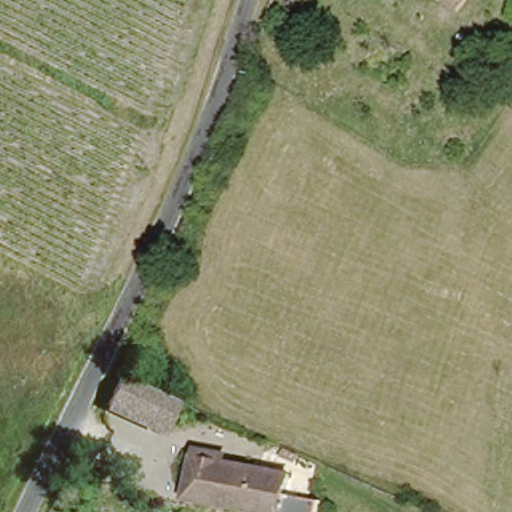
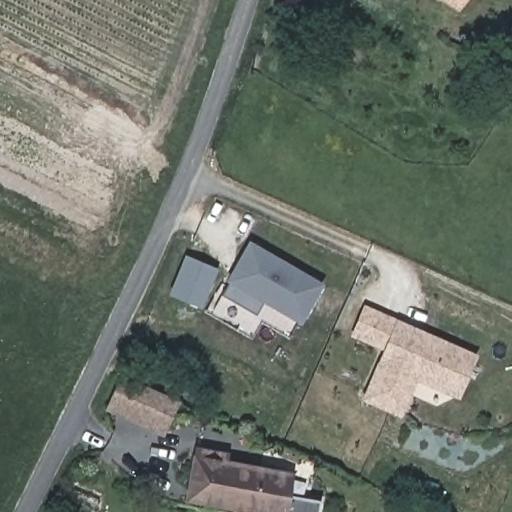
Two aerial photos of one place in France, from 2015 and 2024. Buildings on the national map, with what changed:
unchanged [(448,0),(450,0),(450,1),(448,0)]
new [(256,314),(222,294),(229,282),(227,281),(250,240),(325,284),(301,325),(263,303),(256,314)]
new [(364,305),(396,320),(477,355),(458,398),(417,381),(401,417),(361,400),(382,350),(350,336),(364,305)]
unchanged [(176,405),(162,436),(109,412),(122,381),(176,405)]
unchanged [(184,502),(194,428),(234,434),(234,457),(294,467),(290,492),(322,497),(320,512),(233,512),(184,502)]

